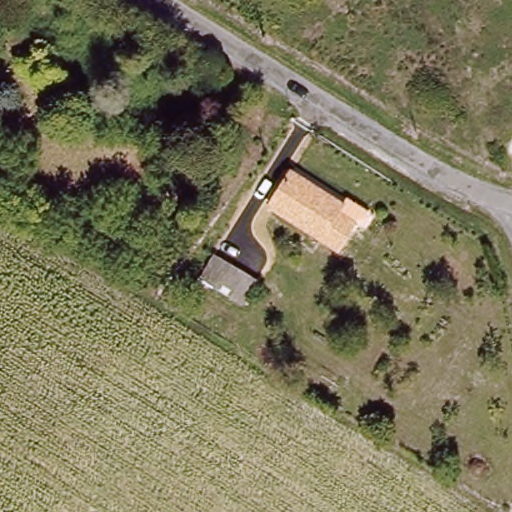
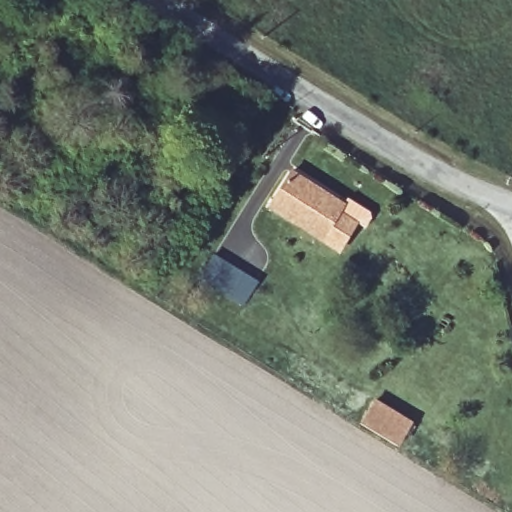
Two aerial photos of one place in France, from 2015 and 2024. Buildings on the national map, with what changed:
unchanged [(263,203),(290,166),(341,197),(337,207),(355,218),(335,247),(263,203)]
unchanged [(222,305),(192,285),(211,260),(240,280),(222,305)]
new [(412,420),(397,446),(358,423),(373,397),(412,420)]

